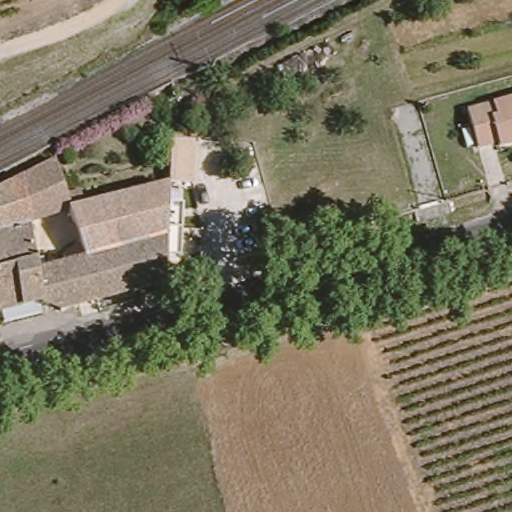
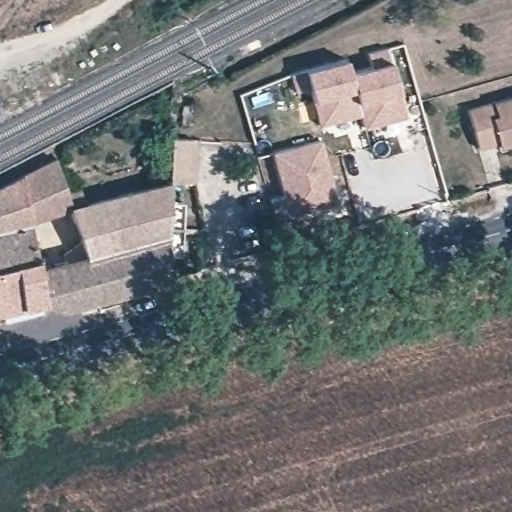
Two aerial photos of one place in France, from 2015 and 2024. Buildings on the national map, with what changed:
new [(343,56),(348,71),(370,65),(366,52),(386,46),(407,116),(365,129),(360,114),(319,126),(307,88),(294,91),(288,73),(343,56)]
unchanged [(503,148),(504,143),(484,149),(473,111),(512,97),(512,145),(503,148)]
unchanged [(198,135),(195,169),(188,169),(185,189),(170,190),(170,185),(175,134),(198,135)]
new [(337,203),(275,220),(269,200),(284,196),(272,153),(320,140),(337,203)]
unchanged [(71,200),(91,191),(99,202),(170,185),(170,190),(163,275),(67,303),(39,293),(0,305),(0,190),(59,166),(71,200)]

